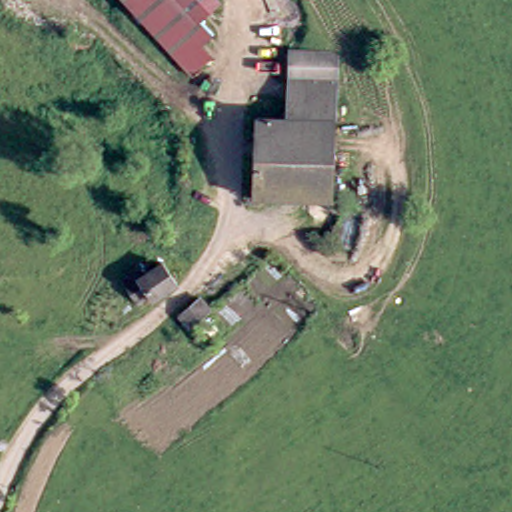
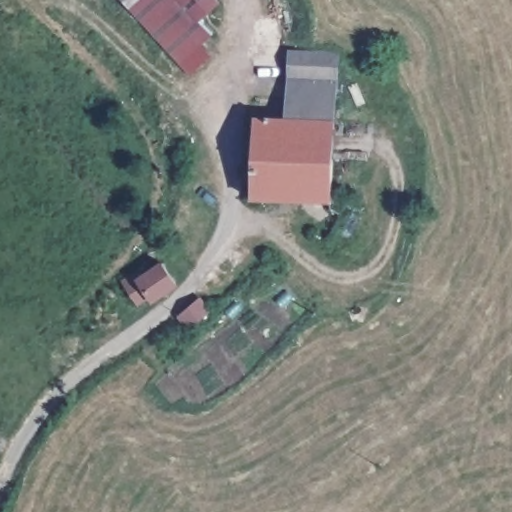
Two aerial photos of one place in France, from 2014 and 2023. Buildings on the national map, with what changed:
unchanged [(131,5),(127,0),(137,0),(131,5)]
unchanged [(216,35),(202,48),(212,59),(195,75),(131,5),(137,0),(184,0),(216,35)]
unchanged [(221,3),(202,20),(184,0),(219,0),(221,3)]
unchanged [(282,56),(330,57),(329,84),(282,83),(282,56)]
unchanged [(281,122),(282,83),(329,84),(328,123),(281,122)]
unchanged [(244,200),(246,122),(246,103),(267,103),(266,121),(281,122),(328,123),(326,204),(244,200)]
unchanged [(320,246),(307,238),(322,210),(334,217),(320,246)]
unchanged [(141,307),(126,284),(140,275),(144,280),(166,266),(180,285),(155,304),(152,300),(141,307)]
unchanged [(180,317),(203,300),(213,314),(192,333),(180,317)]

